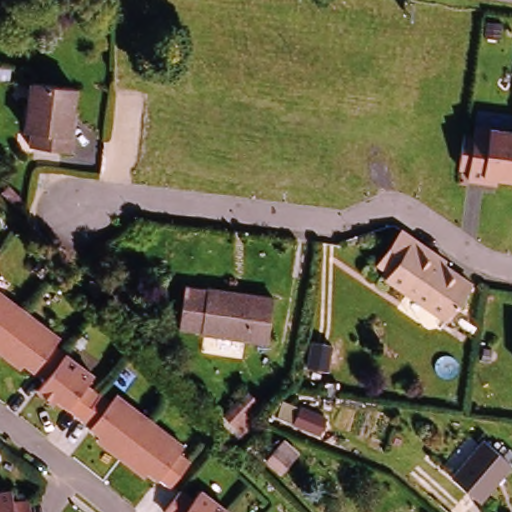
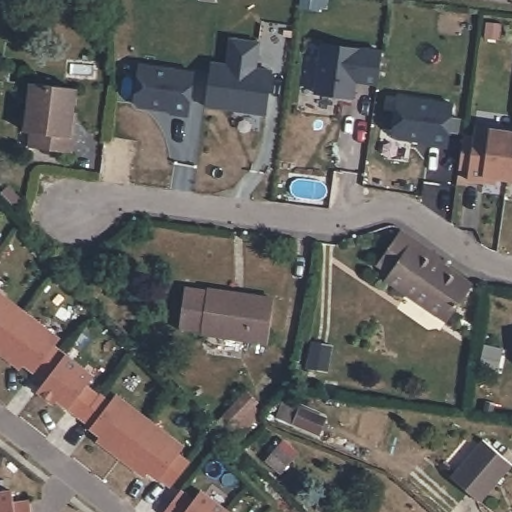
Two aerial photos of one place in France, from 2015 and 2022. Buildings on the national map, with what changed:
new [(203,105),(212,60),(227,62),(230,37),(261,40),(258,67),(273,69),(266,115),(203,105)]
new [(321,45),(381,53),(376,85),(354,81),(351,100),(314,94),(321,45)]
new [(137,65),(192,74),(185,117),(168,115),(168,112),(136,106),(131,101),(137,65)]
unchanged [(78,139),(76,153),(34,147),(35,132),(29,131),(35,82),(78,89),(75,112),(81,113),(78,139)]
new [(397,98),(451,105),(446,149),(429,146),(429,144),(396,140),(392,134),(397,98)]
unchanged [(512,181),(500,179),(499,184),(468,180),(476,126),(512,131),(512,181)]
unchanged [(417,240),(447,261),(443,266),(470,285),(444,320),(388,278),(391,275),(378,265),(403,230),(416,239),(417,240)]
unchanged [(273,299),(266,341),(180,330),(186,287),(273,299)]
unchanged [(23,312),(0,342),(0,295),(23,312)]
unchanged [(58,340),(52,346),(63,355),(45,378),(24,361),(19,368),(0,353),(0,342),(23,312),(58,340)]
unchanged [(324,369),(305,366),(309,341),(328,344),(324,369)]
unchanged [(91,377),(84,387),(95,396),(79,417),(55,400),(52,403),(36,390),(45,378),(63,355),(91,377)]
unchanged [(333,395),(321,393),(323,381),(334,382),(333,395)]
unchanged [(97,394),(108,402),(113,395),(181,448),(176,455),(188,463),(170,486),(148,470),(143,477),(95,440),(99,434),(79,417),(95,396),(97,394)]
unchanged [(511,464),(479,501),(452,477),(484,440),(511,464)]
unchanged [(191,502),(198,492),(223,512),(161,512),(178,491),(191,502)]
unchanged [(11,508),(27,506),(28,512),(0,512),(0,498),(9,497),(11,508)]

